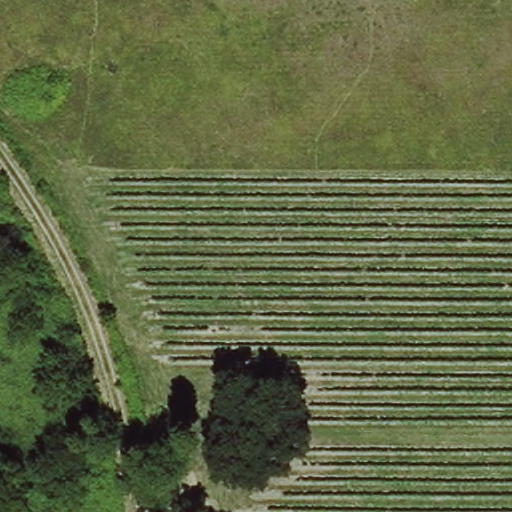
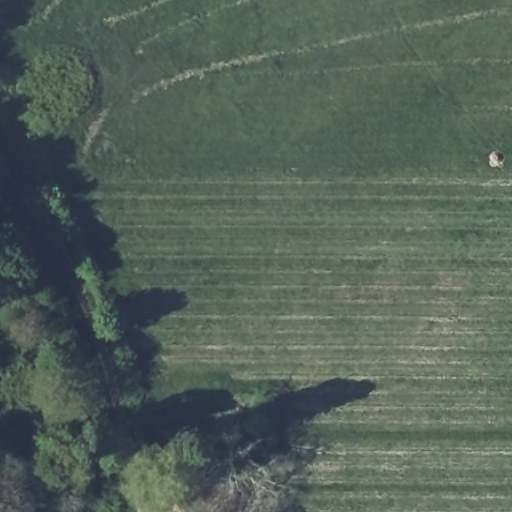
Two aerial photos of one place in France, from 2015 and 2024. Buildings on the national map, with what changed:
unchanged [(254,441),(257,457),(243,458),(241,442),(254,441)]

